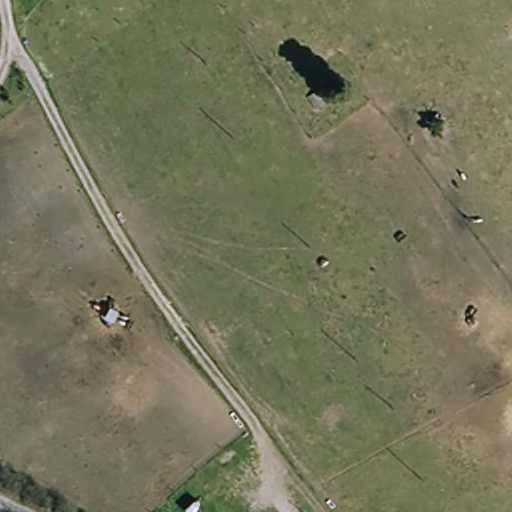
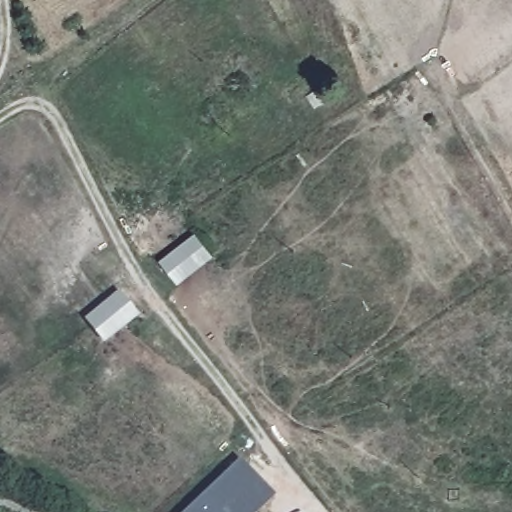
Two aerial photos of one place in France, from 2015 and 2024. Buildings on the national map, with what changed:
new [(195,233),(213,256),(177,284),(160,261),(195,233)]
new [(120,289),(139,313),(103,341),(85,318),(120,289)]
new [(275,493),(255,512),(183,512),(240,456),(275,493)]

